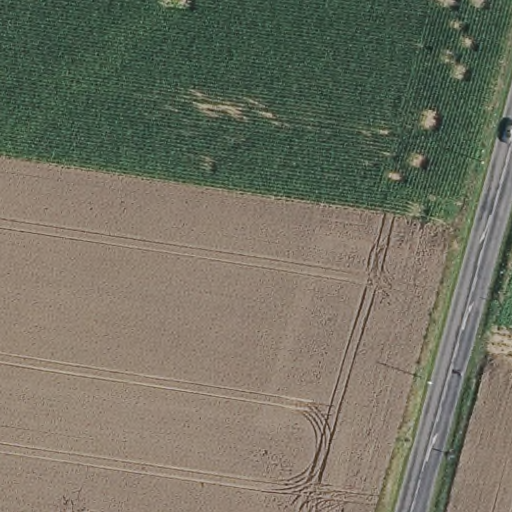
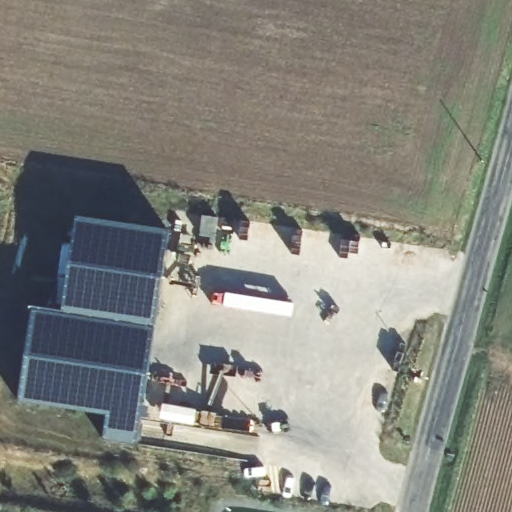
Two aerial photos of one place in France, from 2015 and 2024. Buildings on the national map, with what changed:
new [(104,441),(109,416),(20,403),(34,307),(64,313),(79,218),(169,230),(136,446),(104,441)]

